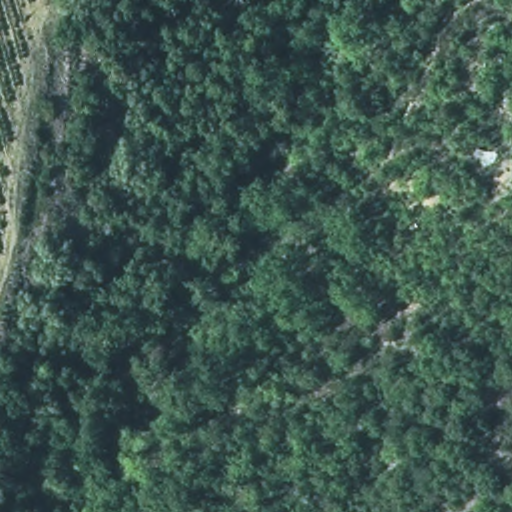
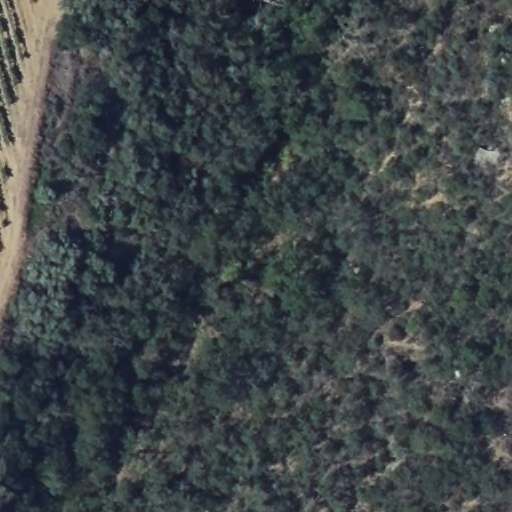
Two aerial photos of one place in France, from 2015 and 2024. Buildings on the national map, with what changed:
unchanged [(478,145),(492,148),(487,162),(477,160),(478,145)]

